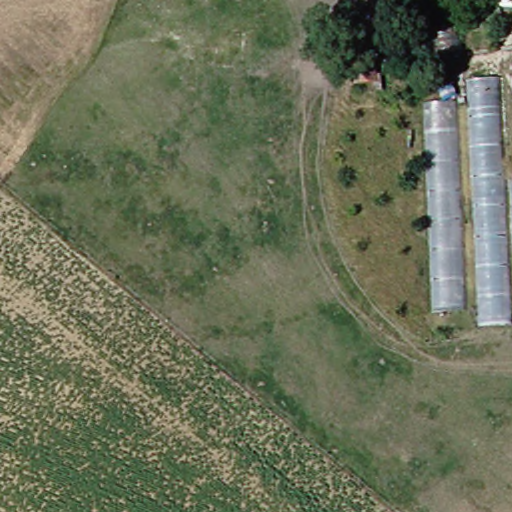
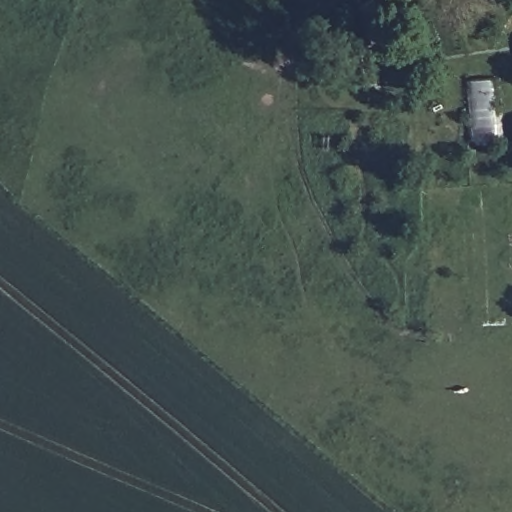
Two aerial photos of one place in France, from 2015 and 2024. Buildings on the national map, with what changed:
unchanged [(380,83),(360,83),(358,57),(379,56),(380,83)]
demolished [(441,105),(472,102),(471,84),(487,69),(508,78),(512,135),(512,327),(487,328),(487,314),(448,313),(441,105)]

